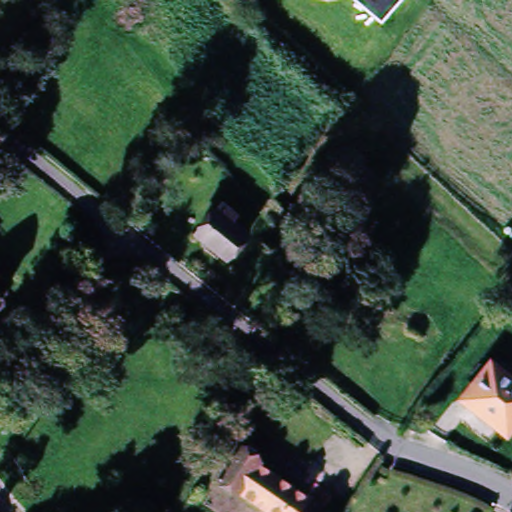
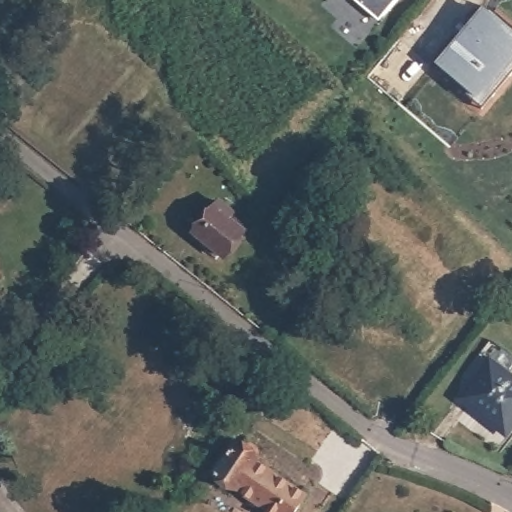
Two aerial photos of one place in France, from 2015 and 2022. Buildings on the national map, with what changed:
unchanged [(352,0),(400,0),(379,24),(352,0)]
new [(512,30),(512,78),(485,110),(477,102),(435,66),(485,11),(512,30)]
unchanged [(209,123),(217,131),(210,137),(202,130),(209,123)]
unchanged [(223,263),(194,239),(215,213),(220,207),(234,218),(229,224),(245,237),(223,263)]
unchanged [(0,300),(4,303),(0,307),(0,300)]
unchanged [(473,392),(502,360),(507,365),(512,365),(512,426),(473,392)]
unchanged [(235,492),(217,478),(237,448),(257,461),(253,466),(302,500),(294,512),(265,512),(235,492)]

